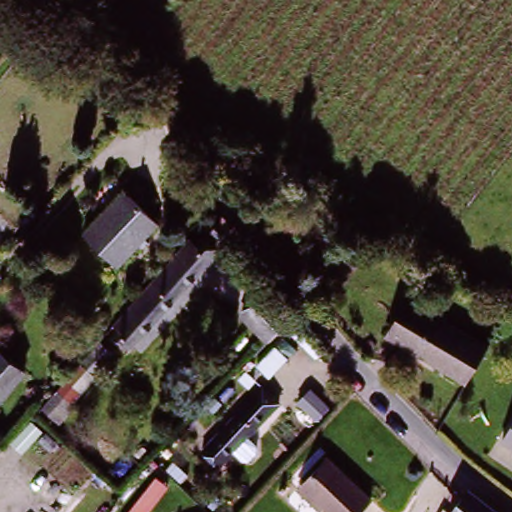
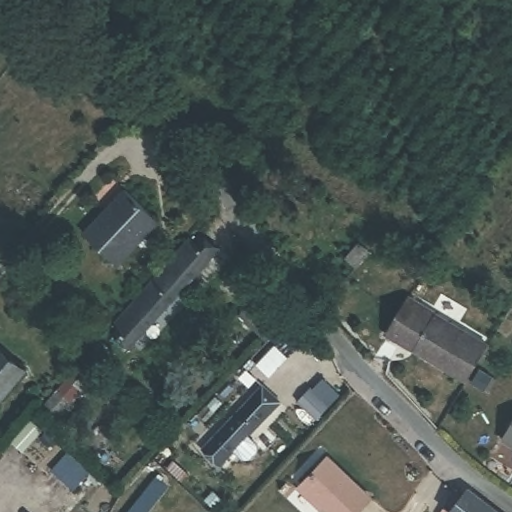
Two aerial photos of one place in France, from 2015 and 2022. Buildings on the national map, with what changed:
unchanged [(155,220),(115,265),(84,237),(125,191),(155,220)]
unchanged [(118,328),(113,324),(187,240),(193,244),(199,237),(214,252),(132,345),(116,330),(118,328)]
unchanged [(267,340),(241,315),(263,292),(289,318),(267,340)]
unchanged [(408,298),(434,313),(413,348),(412,350),(386,335),(408,298)]
unchanged [(413,348),(434,313),(488,346),(467,381),(413,348)]
unchanged [(92,372),(80,361),(99,340),(112,351),(92,372)]
unchanged [(0,403),(0,349),(26,370),(0,403)]
unchanged [(94,377),(58,420),(42,407),(78,363),(94,377)]
unchanged [(220,465),(203,450),(265,386),(280,402),(220,465)]
unchanged [(302,483),(328,456),(372,497),(359,512),(331,512),(323,505),(320,508),(298,487),(302,483)]
unchanged [(492,512),(455,512),(468,494),(492,512)]

